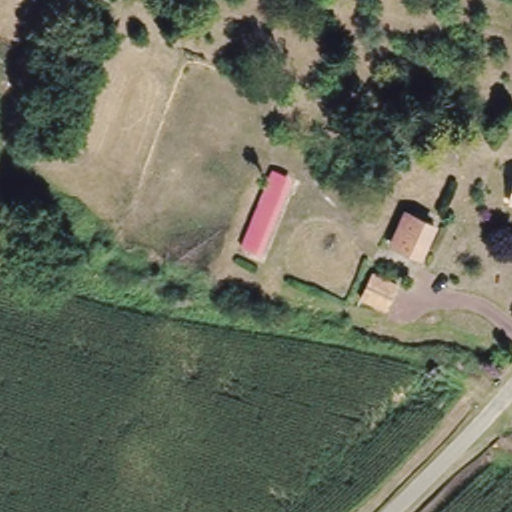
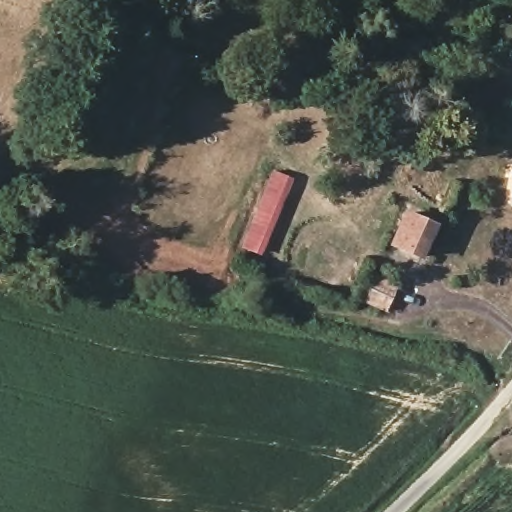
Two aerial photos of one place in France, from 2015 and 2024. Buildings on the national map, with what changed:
unchanged [(507,173),(509,162),(512,163),(512,174),(507,173)]
unchanged [(289,180),(261,255),(239,248),(266,175),(289,180)]
unchanged [(407,209),(434,220),(428,237),(421,255),(393,242),(399,229),(407,209)]
unchanged [(387,308),(362,300),(372,271),(398,281),(387,308)]

